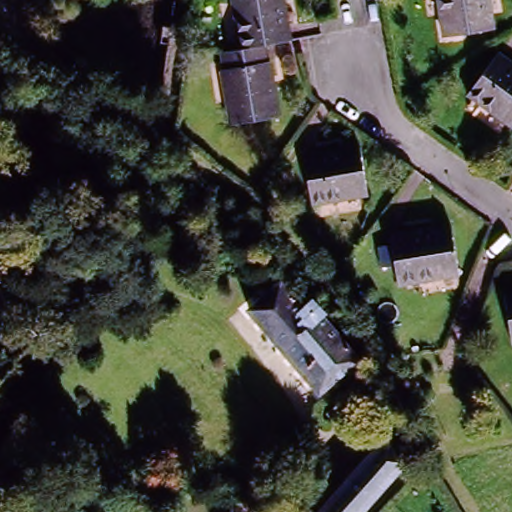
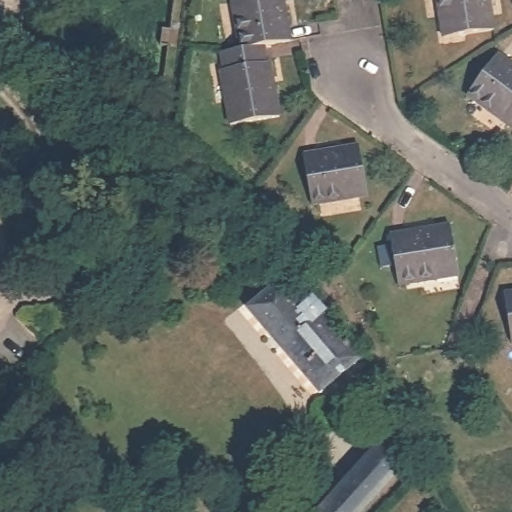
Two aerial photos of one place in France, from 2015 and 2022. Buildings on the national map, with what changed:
unchanged [(276,79),(270,79),(273,94),(279,93),(284,119),(235,129),(229,102),(234,101),(233,88),(227,88),(226,72),(231,71),(228,59),(247,55),(244,38),(250,37),(247,20),(240,21),(237,0),(291,0),(295,26),(287,27),(292,46),(266,51),(269,63),(273,64),(276,79)]
unchanged [(442,3),(437,4),(436,0),(486,0),(493,29),(443,40),(439,23),(445,22),(442,3)]
unchanged [(502,112),(488,102),(483,108),(470,98),(495,61),(509,70),(512,68),(512,128),(499,118),(502,112)]
unchanged [(323,199),(323,204),(309,205),(303,161),(319,159),(318,153),(357,148),(364,200),(343,203),(342,197),(323,199)]
unchanged [(449,230),(457,278),(417,285),(416,278),(393,282),(388,244),(404,242),(403,237),(449,230)]
unchanged [(314,304),(329,317),(323,322),(358,363),(320,394),(251,314),(282,287),(304,313),(314,304)]
unchanged [(503,298),(512,296),(512,350),(503,298)]
unchanged [(409,463),(365,512),(325,512),(387,443),(409,463)]

